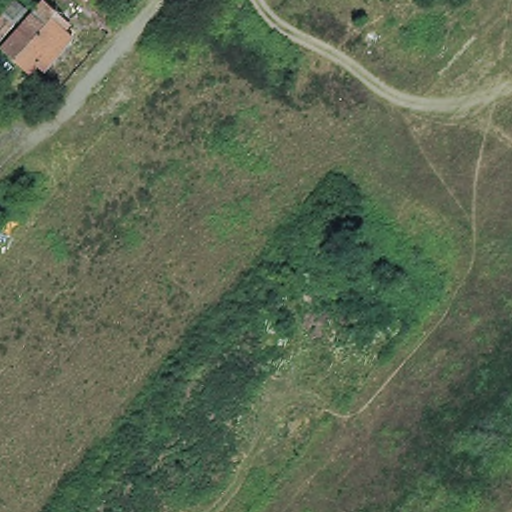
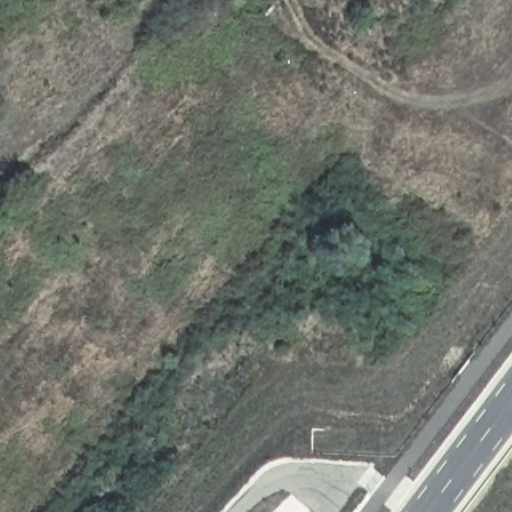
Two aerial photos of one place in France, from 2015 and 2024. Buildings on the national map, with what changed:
demolished [(26,70),(0,47),(0,46),(40,0),(41,0),(67,22),(62,29),(70,37),(43,69),(33,61),(26,70)]

